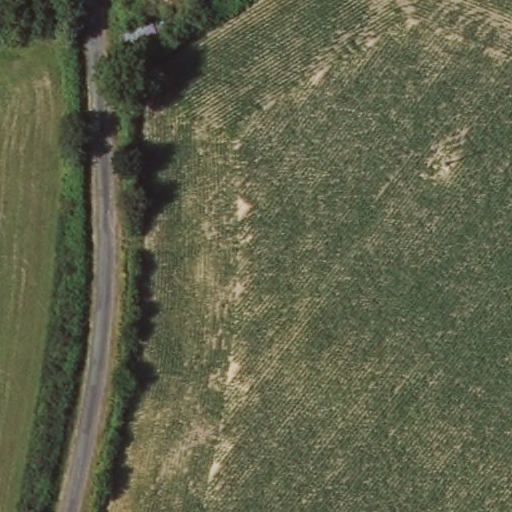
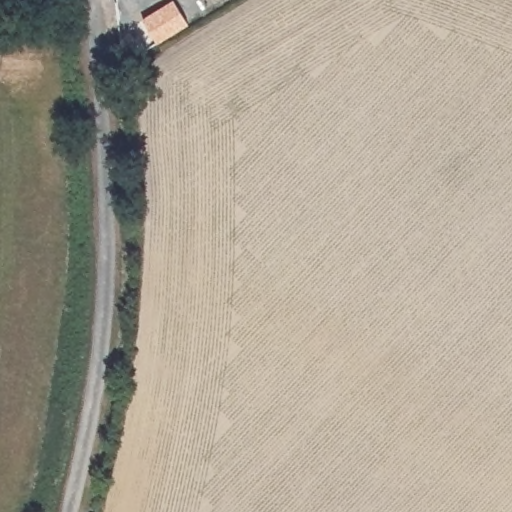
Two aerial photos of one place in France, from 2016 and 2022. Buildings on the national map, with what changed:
new [(174,2),(188,25),(158,44),(143,20),(174,2)]
demolished [(142,23),(143,38),(121,40),(120,24),(142,23)]

